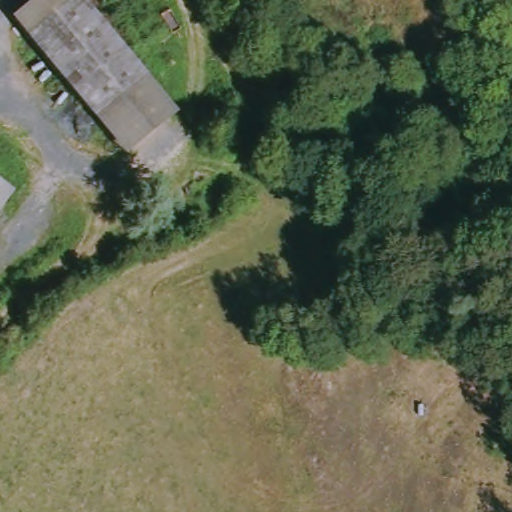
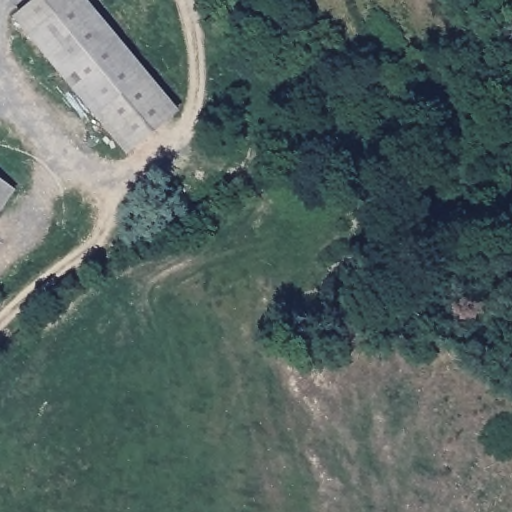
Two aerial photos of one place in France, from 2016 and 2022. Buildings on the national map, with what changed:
unchanged [(76,0),(171,112),(123,156),(8,22),(35,0),(76,0)]
unchanged [(0,206),(0,181),(11,190),(0,206)]

